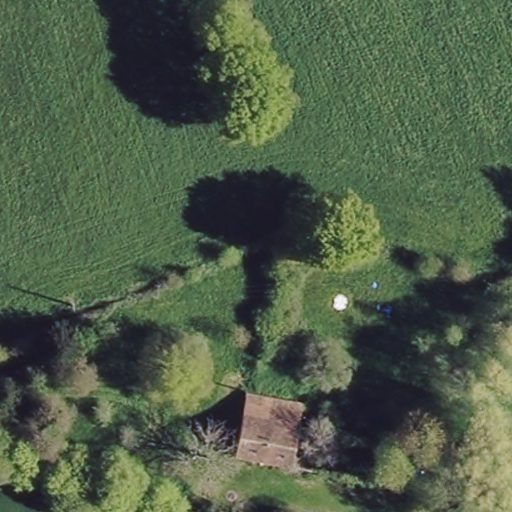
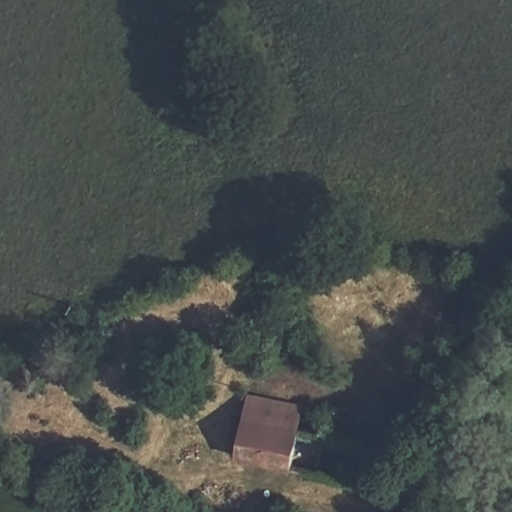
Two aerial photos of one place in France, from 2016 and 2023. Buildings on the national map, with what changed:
unchanged [(246,392),(297,397),(295,426),(375,442),(369,480),(231,458),(246,392)]

